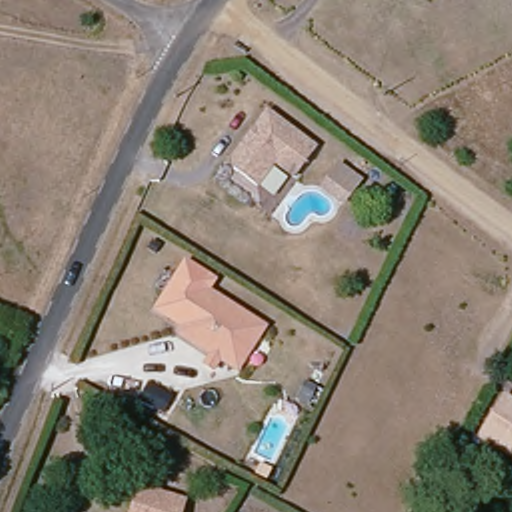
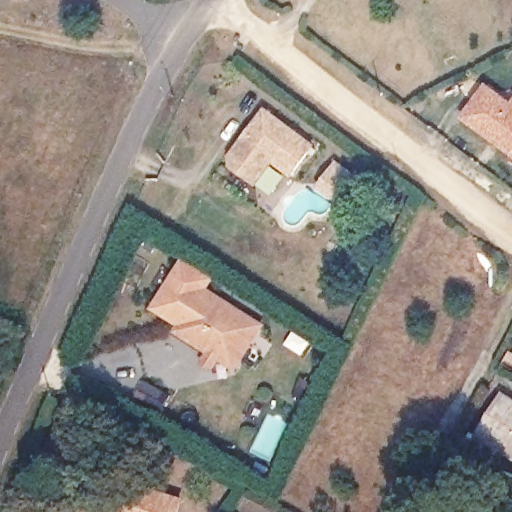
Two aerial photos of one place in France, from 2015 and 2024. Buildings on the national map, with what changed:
new [(512,157),(461,118),(487,83),(512,100),(512,157)]
unchanged [(294,176),(275,162),(258,185),(234,168),(232,158),(246,140),(254,142),(261,133),(254,128),(267,111),(315,146),(294,176)]
unchanged [(340,163),(360,178),(348,194),(328,180),(340,163)]
unchanged [(193,344),(176,333),(180,327),(153,310),(183,263),(210,281),(203,291),(262,329),(247,352),(235,371),(217,359),(214,364),(206,358),(209,354),(193,344)]
unchanged [(480,436),(503,396),(512,401),(512,455),(508,452),(480,436)]
unchanged [(144,483),(184,502),(179,512),(130,512),(144,483)]

